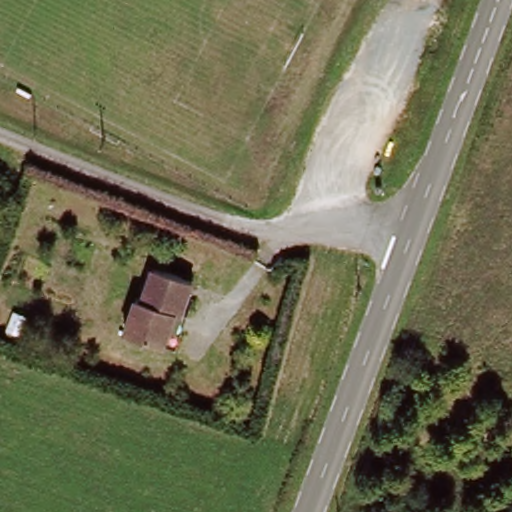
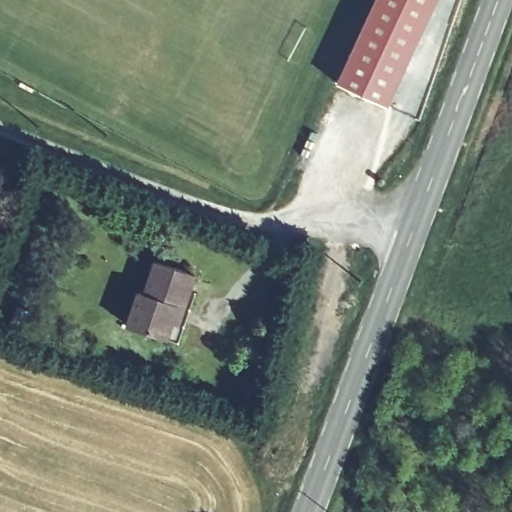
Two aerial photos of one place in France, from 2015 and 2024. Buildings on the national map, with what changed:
new [(441,0),(422,43),(390,106),(335,81),(373,0),(441,0)]
unchanged [(172,344),(157,338),(118,323),(130,289),(138,291),(151,261),(192,277),(180,311),(185,313),(172,344)]

